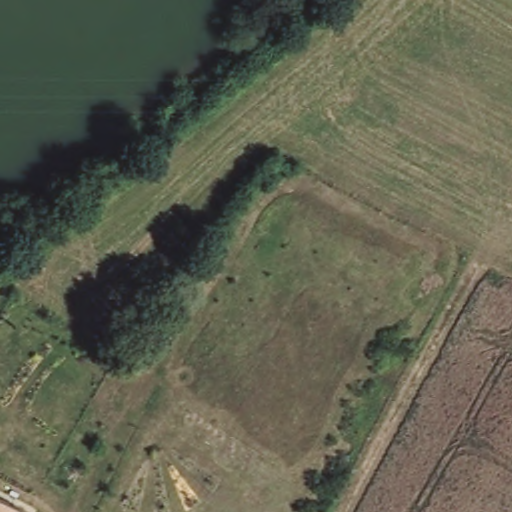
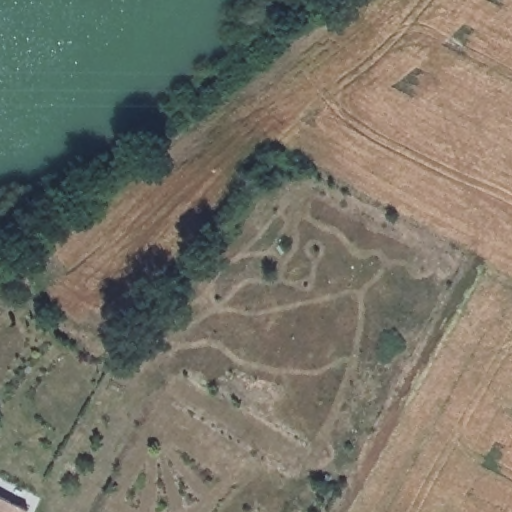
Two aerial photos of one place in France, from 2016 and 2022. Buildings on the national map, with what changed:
unchanged [(32,510),(31,512),(0,512),(0,493),(32,510)]

